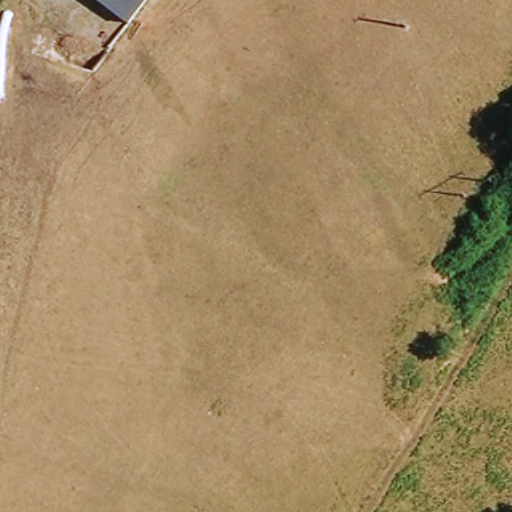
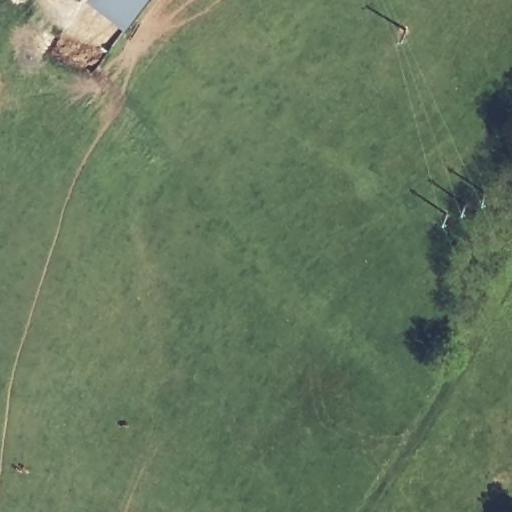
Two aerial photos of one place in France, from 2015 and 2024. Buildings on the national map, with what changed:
unchanged [(130,23),(99,0),(147,0),(130,23)]

